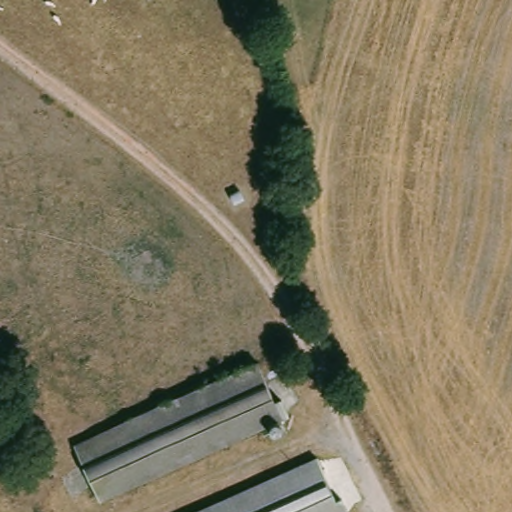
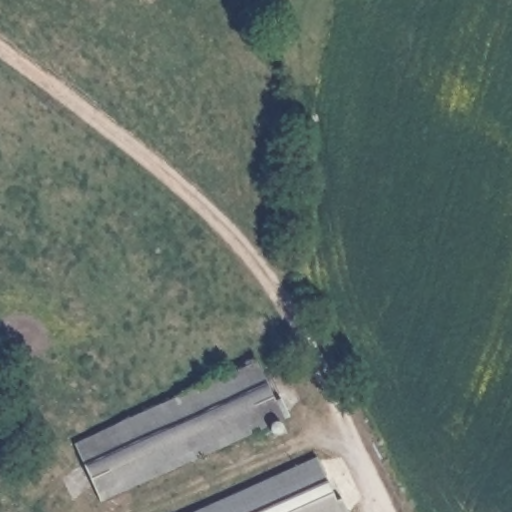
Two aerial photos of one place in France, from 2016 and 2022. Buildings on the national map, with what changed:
unchanged [(286,418),(103,495),(79,439),(262,363),(286,418)]
unchanged [(342,512),(193,512),(319,460),(342,512)]

